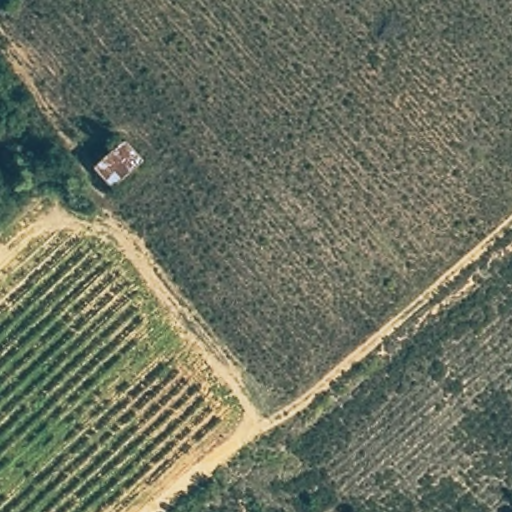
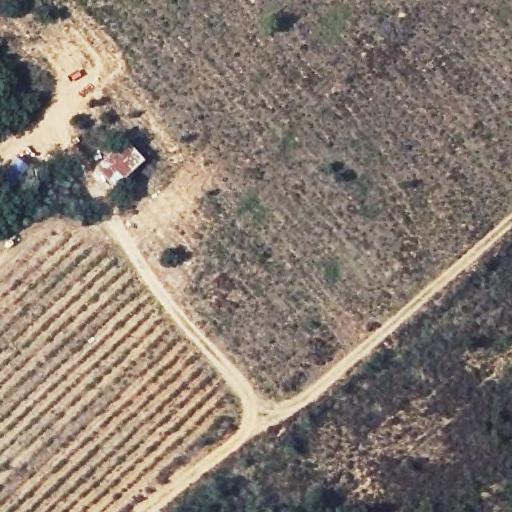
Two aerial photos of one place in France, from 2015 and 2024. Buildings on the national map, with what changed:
unchanged [(122,135),(141,157),(111,187),(91,164),(122,135)]

